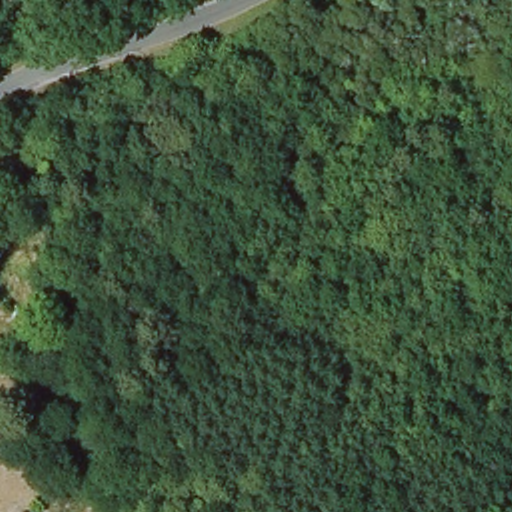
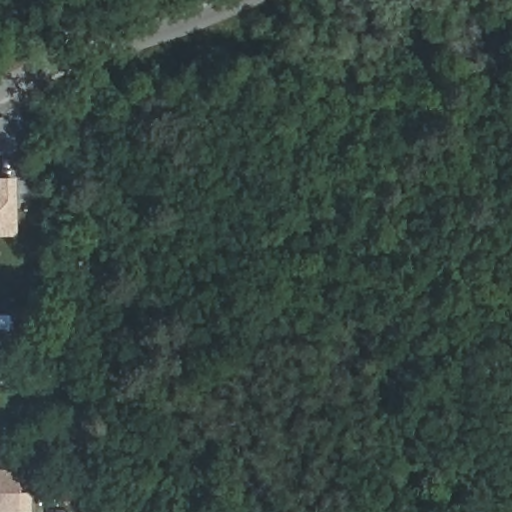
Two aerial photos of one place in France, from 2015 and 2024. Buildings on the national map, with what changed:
new [(16,237),(0,237),(0,179),(15,179),(16,237)]
new [(0,470),(17,471),(18,512),(0,512),(0,470)]

